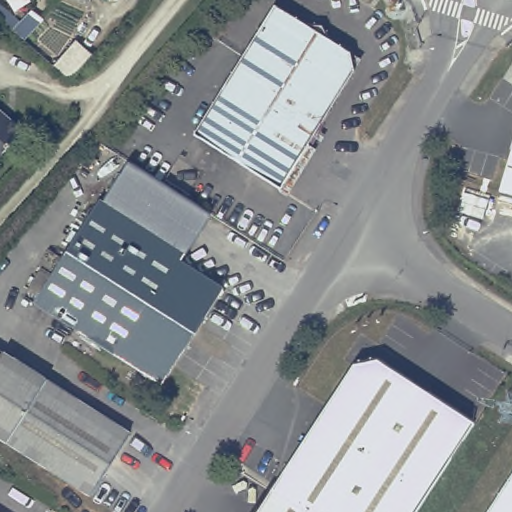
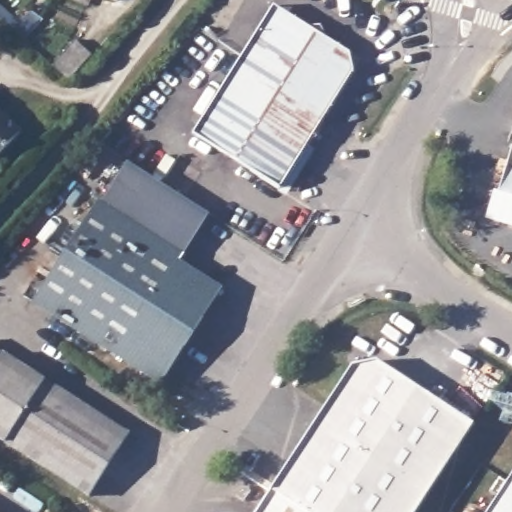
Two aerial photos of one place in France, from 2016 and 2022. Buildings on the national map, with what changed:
unchanged [(83,0),(89,0),(89,1),(83,0)]
unchanged [(367,59),(359,71),(285,188),(198,132),(279,3),(310,24),(325,26),(334,38),(354,51),(367,59)]
unchanged [(0,5),(5,10),(18,21),(29,9),(41,18),(23,39),(0,19),(0,5)]
unchanged [(69,80),(53,65),(74,39),(91,54),(69,80)]
unchanged [(0,157),(0,108),(24,129),(0,157)]
unchanged [(23,296),(31,282),(41,289),(99,201),(103,203),(128,161),(210,214),(182,260),(224,287),(161,385),(23,296)]
unchanged [(504,190),(512,161),(512,192),(504,190)]
unchanged [(0,351),(2,352),(0,355),(0,351)]
unchanged [(129,434),(90,494),(0,437),(0,355),(2,352),(129,434)]
unchanged [(270,489),(353,363),(374,359),(474,423),(415,512),(306,512),(270,489)]
unchanged [(512,473),(512,512),(486,512),(512,473)]
unchanged [(270,489),(306,512),(255,512),(270,489)]

